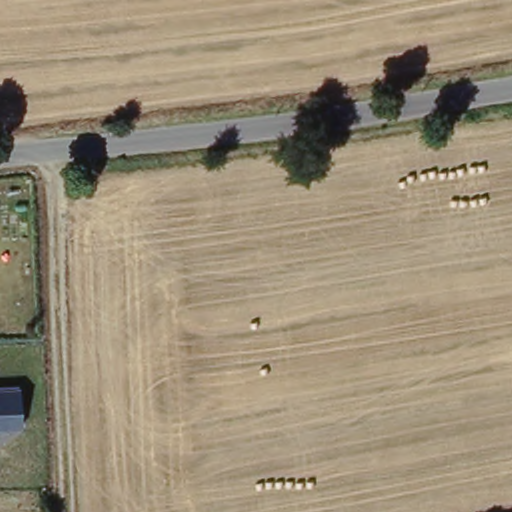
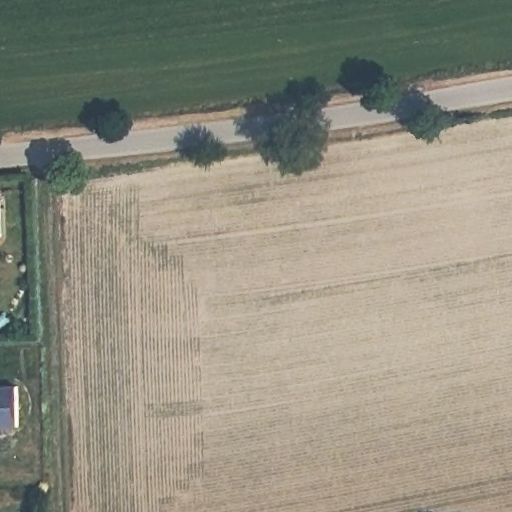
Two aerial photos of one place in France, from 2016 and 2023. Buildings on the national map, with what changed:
unchanged [(19,386),(21,428),(0,428),(0,387),(19,386)]

